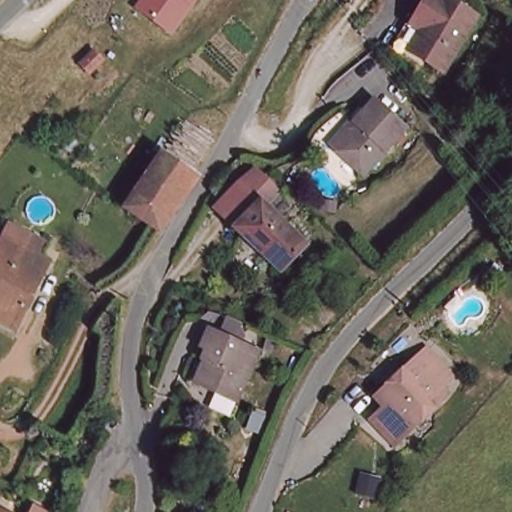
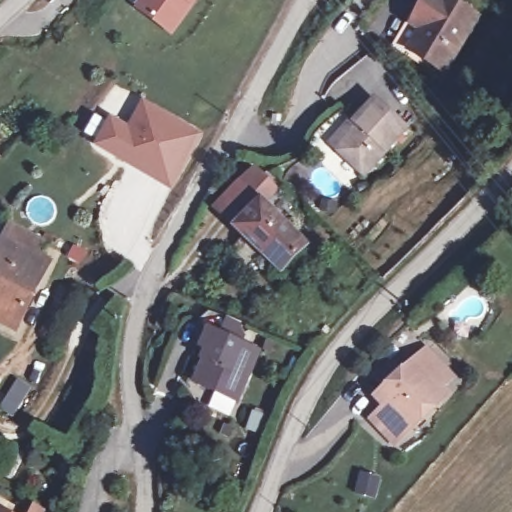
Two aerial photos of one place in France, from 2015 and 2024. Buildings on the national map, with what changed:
new [(199,0),(173,35),(135,8),(140,0),(199,0)]
unchanged [(419,25),(437,0),(453,0),(484,22),(446,74),(414,50),(401,41),(415,21),(419,25)]
unchanged [(411,125),(368,172),(342,147),(334,140),(355,117),(358,120),(380,95),(411,125)]
new [(128,125),(142,100),(205,135),(173,190),(94,146),(111,116),(128,125)]
demolished [(198,185),(174,223),(134,200),(158,162),(198,185)]
unchanged [(266,196),(254,209),(290,245),(270,266),(215,210),(248,178),(266,196)]
unchanged [(0,325),(0,254),(12,231),(41,247),(35,262),(41,265),(31,287),(37,291),(21,325),(16,334),(0,325)]
unchanged [(241,406),(200,390),(212,356),(205,353),(212,336),(224,341),(230,325),(239,330),(247,338),(242,348),(261,356),(241,406)]
unchanged [(450,370),(437,386),(442,392),(415,421),(420,425),(395,452),(383,438),(368,423),(382,408),(372,398),(423,345),(450,370)]
unchanged [(18,509),(17,512),(0,512),(0,501),(18,509)]

